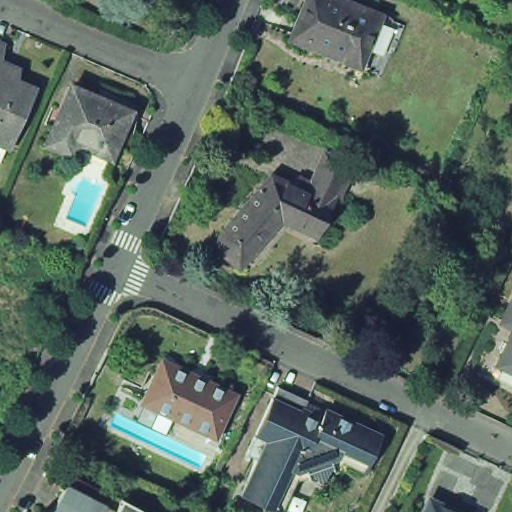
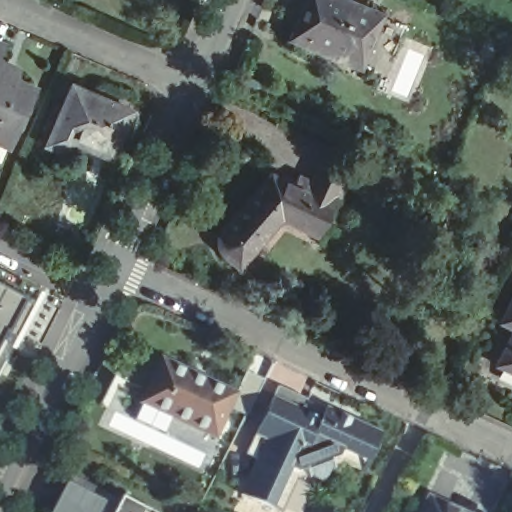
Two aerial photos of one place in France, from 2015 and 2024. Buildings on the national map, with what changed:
unchanged [(300,0),(339,0),(375,15),(369,30),(353,70),(318,56),(320,52),(285,39),(300,0)]
unchanged [(125,111),(107,152),(73,138),(65,155),(40,144),(66,85),(125,111)]
unchanged [(21,101),(0,150),(0,91),(21,101)]
unchanged [(228,266),(212,252),(208,242),(211,232),(259,175),(283,186),(288,176),(299,181),(314,151),(343,165),(329,196),(325,194),(307,234),(270,217),(228,266)]
unchanged [(425,235),(443,241),(434,267),(416,261),(425,235)]
new [(39,299),(0,370),(0,278),(39,299)]
unchanged [(478,366),(512,295),(512,382),(478,366)]
unchanged [(154,369),(169,375),(170,371),(181,376),(180,377),(205,389),(206,387),(231,399),(211,442),(137,408),(154,369)]
unchanged [(272,391),(302,405),(298,413),(317,421),(321,413),(327,416),(376,438),(359,476),(336,466),(335,469),(294,485),(290,483),(277,512),(262,512),(236,500),(252,464),(241,459),(272,391)]
unchanged [(105,512),(47,512),(61,489),(105,512)]
unchanged [(136,512),(110,512),(116,501),(136,512)]
unchanged [(440,512),(421,512),(425,505),(440,512)]

